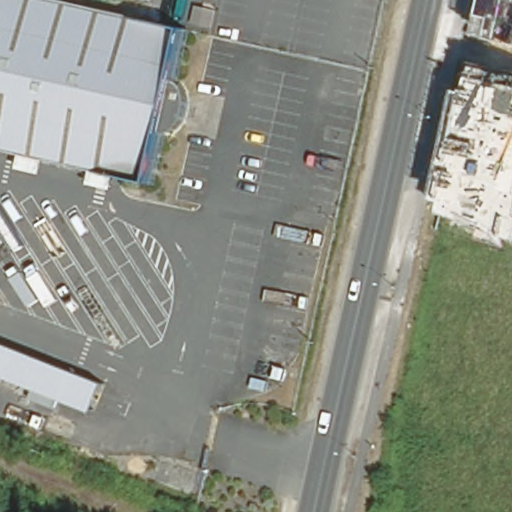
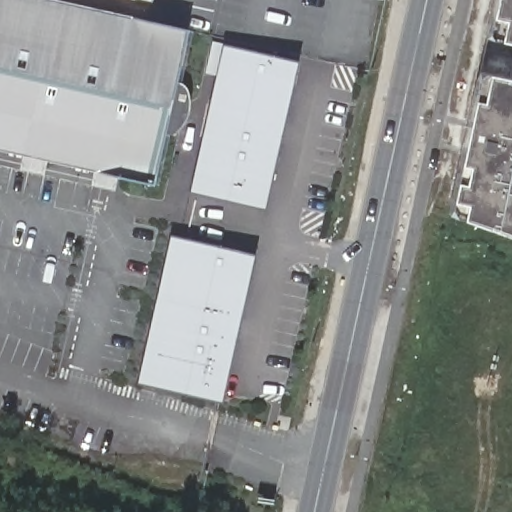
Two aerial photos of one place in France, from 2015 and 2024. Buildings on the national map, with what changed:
unchanged [(54,0),(183,29),(183,31),(149,184),(0,151),(0,0),(54,0)]
unchanged [(120,0),(146,0),(145,5),(120,0)]
new [(493,0),(512,0),(512,43),(485,38),(493,0)]
new [(227,47),(302,64),(268,213),(193,196),(227,47)]
new [(447,209),(476,78),(485,71),(512,77),(512,237),(452,215),(447,209)]
new [(173,236),(257,255),(223,404),(139,385),(173,236)]
demolished [(103,382),(91,412),(0,377),(0,343),(103,382)]

